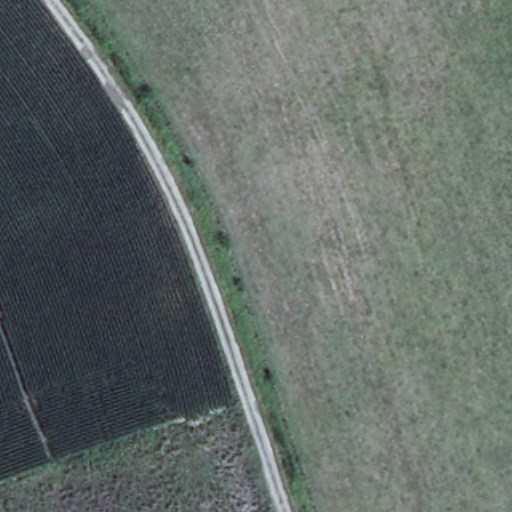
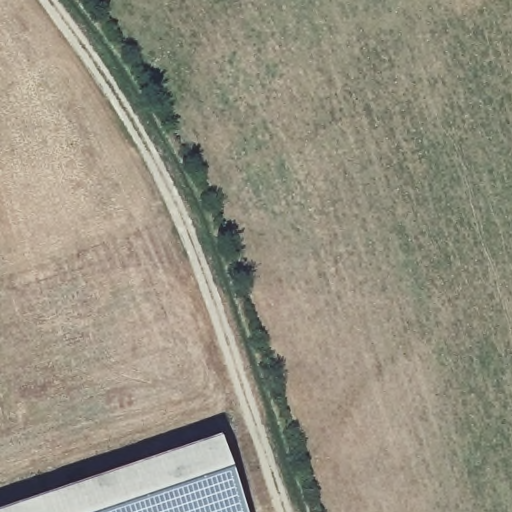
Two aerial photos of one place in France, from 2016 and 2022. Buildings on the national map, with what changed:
new [(220,440),(243,512),(12,512),(220,440)]

